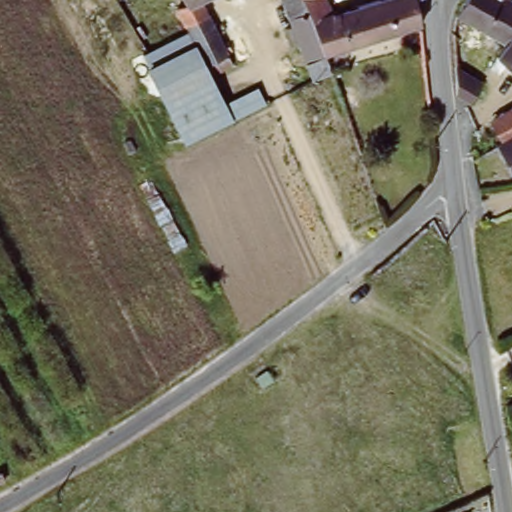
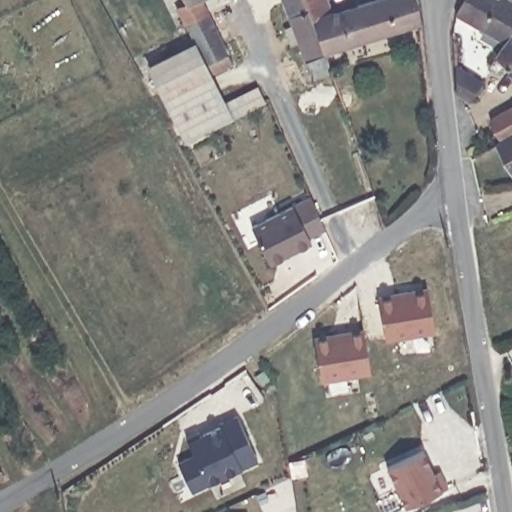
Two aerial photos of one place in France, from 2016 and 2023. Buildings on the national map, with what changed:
unchanged [(167,0),(171,0),(168,1),(167,0)]
unchanged [(229,68),(207,79),(187,38),(175,13),(182,10),(177,0),(207,0),(198,4),(229,68)]
unchanged [(295,50),(289,53),(282,34),(289,32),(277,0),(320,0),(325,13),(339,17),(394,0),(411,0),(415,28),(340,52),(344,67),(326,73),(327,75),(307,85),(304,74),(295,50)]
unchanged [(511,0),(512,1),(512,72),(503,66),(495,75),(485,68),(499,44),(449,16),(458,0),(511,0)]
unchanged [(266,106),(230,124),(185,147),(164,105),(158,108),(155,102),(167,95),(142,59),(187,38),(207,79),(224,111),(259,93),(266,106)]
unchanged [(459,71),(484,84),(474,103),(462,97),(459,71)]
unchanged [(485,126),(512,112),(512,139),(495,149),(484,131),(485,126)]
unchanged [(489,153),(495,149),(512,139),(512,189),(510,190),(489,153)]
new [(310,237),(314,242),(272,265),(249,225),(309,193),(327,228),(310,237)]
new [(382,337),(375,293),(426,285),(432,328),(382,337)]
new [(370,373),(320,381),(312,335),(363,327),(370,373)]
new [(238,469),(207,483),(191,491),(176,458),(192,452),(184,434),(195,429),(197,433),(218,425),(215,419),(234,411),(255,458),(238,469)]
new [(404,507),(385,466),(422,448),(433,470),(437,468),(445,486),(404,507)]

